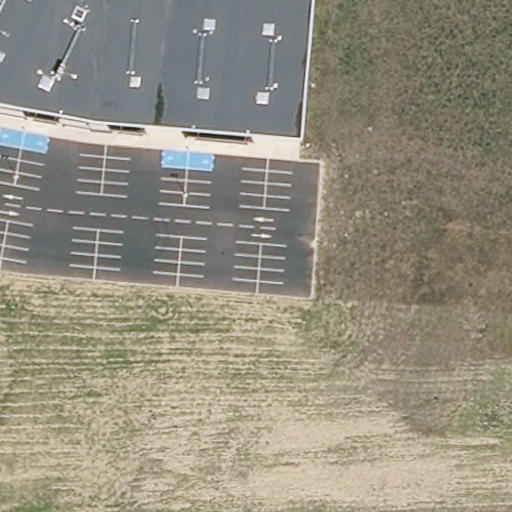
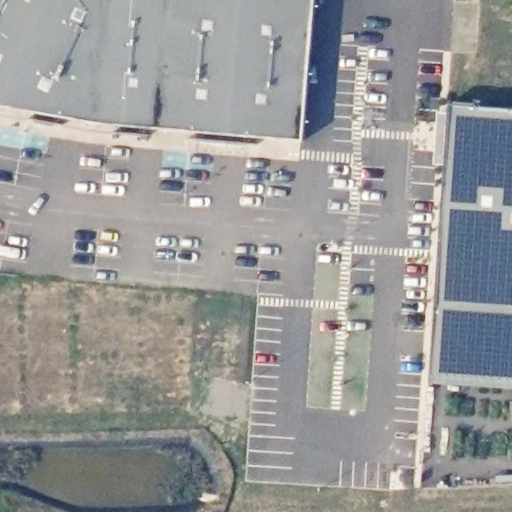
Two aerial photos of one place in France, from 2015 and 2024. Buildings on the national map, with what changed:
unchanged [(299,137),(92,123),(0,106),(0,0),(311,0),(299,137)]
new [(429,384),(433,305),(448,106),(512,110),(512,390),(429,384)]

